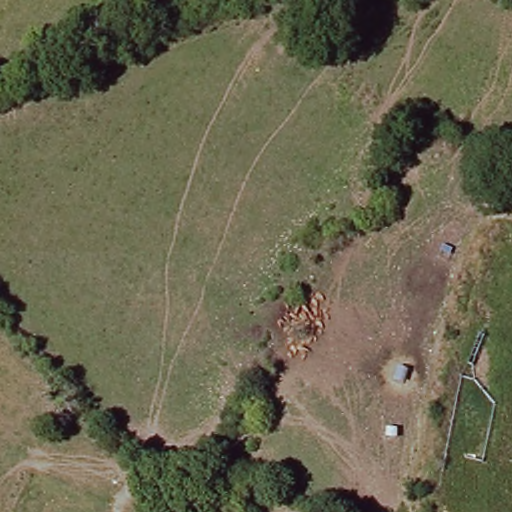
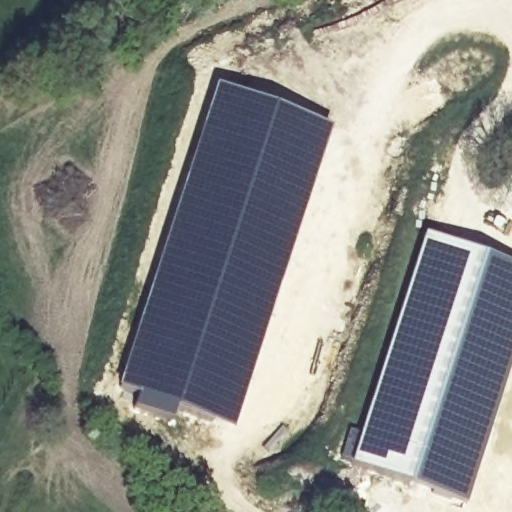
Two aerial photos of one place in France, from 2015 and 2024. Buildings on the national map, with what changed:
new [(114,389),(211,88),(329,125),(307,202),(234,427),(174,407),(169,422),(130,410),(134,395),(114,389)]
new [(502,259),(426,489),(350,464),(424,235),(502,259)]

